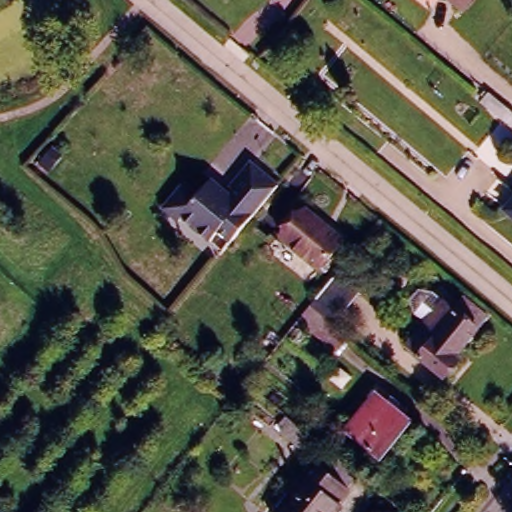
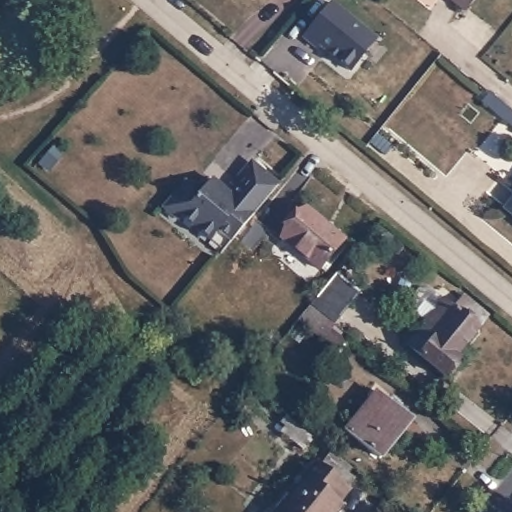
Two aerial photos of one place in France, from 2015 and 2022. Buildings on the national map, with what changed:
unchanged [(451,0),(458,0),(455,4),(451,0)]
new [(350,72),(319,46),(315,50),(302,36),(332,1),(377,39),(350,72)]
unchanged [(481,102),(489,92),(512,112),(512,126),(506,121),(481,102)]
unchanged [(279,187),(230,243),(218,232),(210,242),(182,218),(180,220),(165,208),(185,184),(200,195),(212,180),(229,195),(233,190),(254,166),(279,187)]
unchanged [(512,199),(512,214),(505,208),(512,199)]
unchanged [(332,227),(331,229),(337,233),(337,232),(349,242),(324,273),(282,237),(307,207),(332,227)]
new [(272,234),(255,252),(242,241),(258,221),(272,234)]
unchanged [(321,294),(337,275),(360,295),(339,321),(315,301),(321,294)]
unchanged [(456,361),(441,380),(404,348),(441,303),(447,307),(453,300),(480,323),(474,331),(452,357),(456,361)]
unchanged [(337,358),(312,337),(296,324),(299,321),(307,310),(310,306),(327,320),(322,325),(347,346),(337,358)]
unchanged [(350,421),(377,390),(410,418),(391,443),(380,455),(347,426),(350,421)]
unchanged [(300,450),(279,432),(285,425),(280,421),(284,417),(287,420),(309,438),(300,450)]
unchanged [(338,512),(277,512),(299,486),(303,480),(315,465),(324,456),(355,481),(347,492),(335,506),(340,510),(338,512)]

